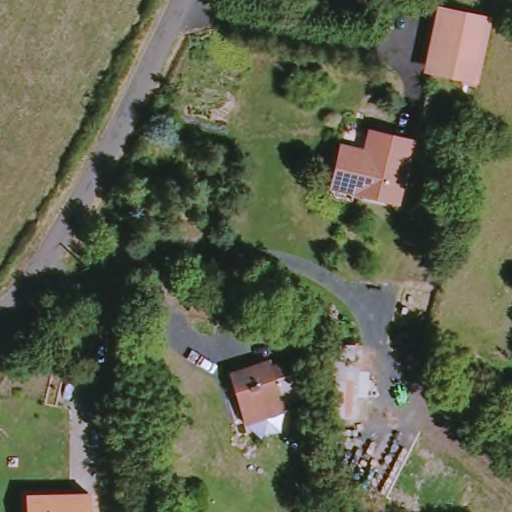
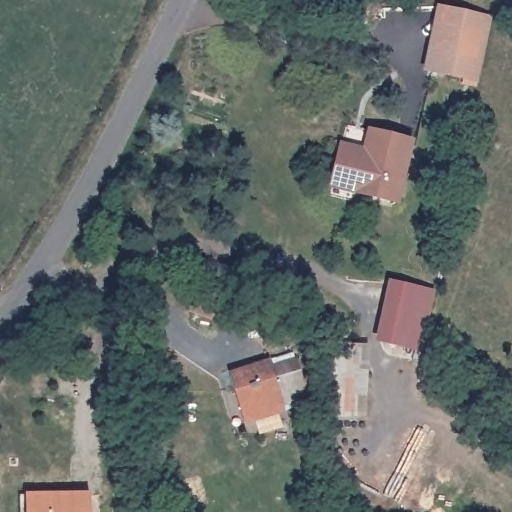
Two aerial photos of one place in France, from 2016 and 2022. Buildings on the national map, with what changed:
unchanged [(473,78),(430,70),(443,6),(485,13),(473,78)]
unchanged [(405,203),(364,192),(379,130),(419,139),(405,203)]
new [(389,281),(436,292),(421,353),(376,342),(389,281)]
unchanged [(226,328),(197,315),(206,295),(234,309),(226,328)]
unchanged [(231,396),(226,379),(270,365),(272,369),(293,364),(303,399),(282,406),(284,413),(250,423),(238,426),(231,396)]
unchanged [(87,512),(23,512),(23,493),(85,490),(87,512)]

